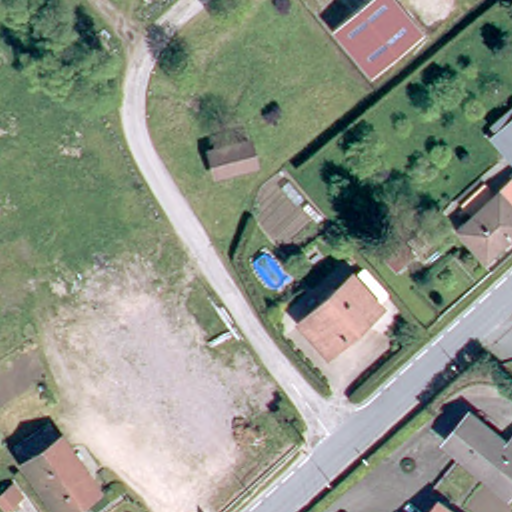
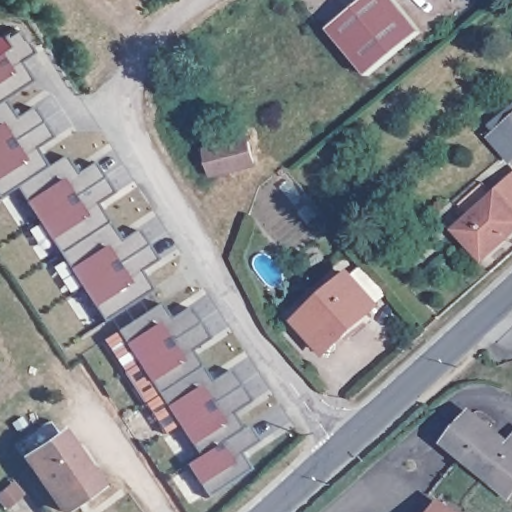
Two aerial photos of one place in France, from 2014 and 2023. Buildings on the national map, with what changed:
unchanged [(371,73),(331,25),(360,0),(399,0),(423,27),(371,73)]
new [(9,51),(1,39),(15,30),(31,56),(18,63),(30,84),(1,102),(0,102),(0,55),(9,51)]
new [(1,102),(14,121),(33,109),(41,124),(0,149),(0,102),(1,102)]
unchanged [(512,118),(512,126),(509,122),(512,118)]
new [(0,197),(0,149),(41,124),(51,139),(33,151),(45,169),(14,188),(0,197)]
unchanged [(255,167),(212,177),(208,156),(252,146),(255,167)]
new [(23,202),(14,188),(45,169),(63,157),(76,176),(93,166),(103,179),(36,222),(23,202)]
new [(49,241),(36,222),(103,179),(112,194),(94,205),(106,224),(58,255),(49,241)]
unchanged [(459,236),(469,225),(456,212),(478,191),(489,204),(512,183),(512,235),(483,262),(459,236)]
new [(68,270),(58,255),(106,224),(119,244),(138,232),(147,247),(81,288),(68,270)]
new [(103,322),(94,308),(81,288),(147,247),(156,262),(139,272),(151,291),(103,322)]
unchanged [(298,329),(351,282),(359,274),(376,292),(366,300),(378,312),(324,360),(298,329)]
new [(123,373),(103,342),(116,332),(158,307),(168,322),(187,310),(197,325),(136,366),(123,373)]
demolished [(151,394),(117,346),(169,311),(214,377),(224,392),(174,427),(151,394)]
demolished [(103,324),(117,346),(151,394),(119,417),(63,332),(94,312),(103,324)]
new [(149,384),(136,366),(197,325),(206,340),(189,351),(199,367),(156,395),(149,384)]
new [(164,408),(156,395),(199,367),(209,385),(228,372),(238,387),(177,427),(164,408)]
new [(190,447),(177,427),(238,387),(248,403),(230,414),(240,432),(197,458),(190,447)]
unchanged [(474,467),(448,443),(472,417),(508,448),(512,444),(512,494),(509,497),(474,467)]
unchanged [(95,492),(68,512),(58,512),(16,450),(50,426),(95,492)]
new [(206,496),(199,487),(185,466),(197,458),(240,432),(246,427),(256,444),(239,455),(248,472),(206,496)]
new [(0,503),(0,492),(11,483),(21,496),(5,508),(0,503)]

